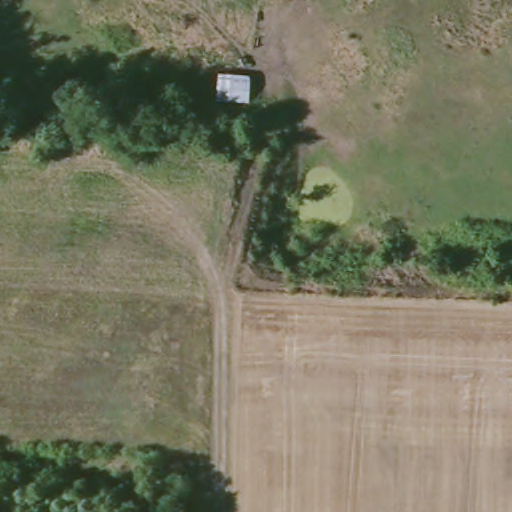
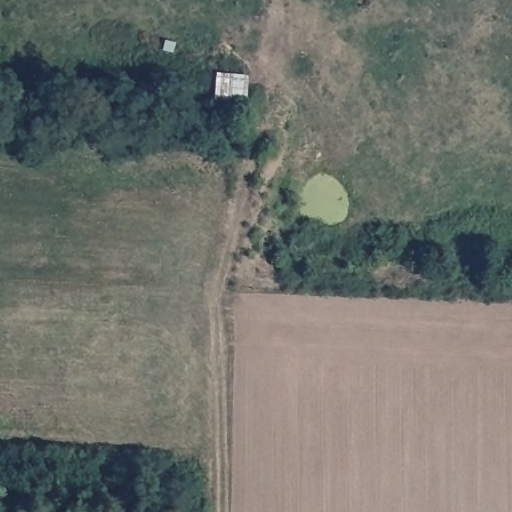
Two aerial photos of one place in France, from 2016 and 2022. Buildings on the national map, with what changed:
unchanged [(248,76),(245,96),(217,92),(218,71),(248,76)]

